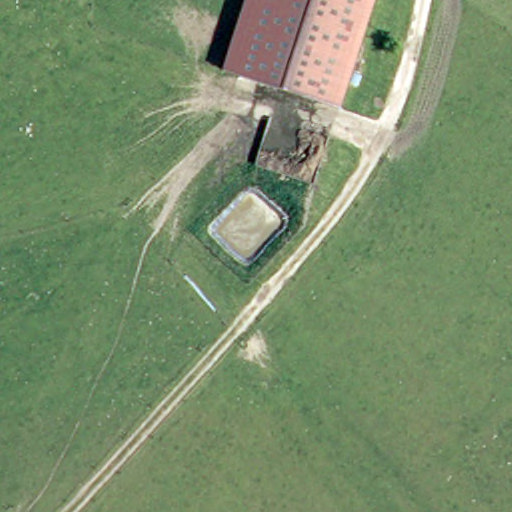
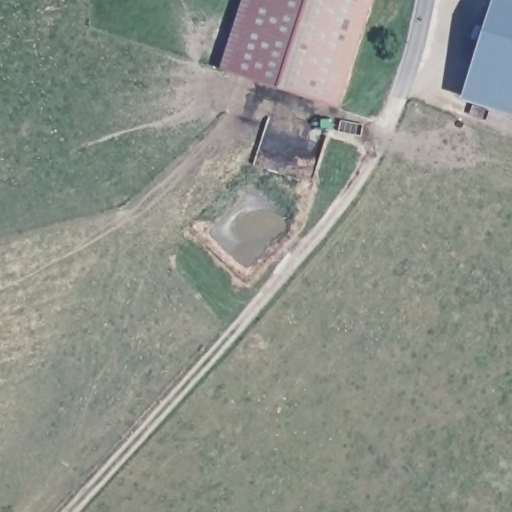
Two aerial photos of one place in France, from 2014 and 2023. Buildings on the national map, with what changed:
unchanged [(246,0),(369,0),(343,103),(227,73),(246,0)]
new [(462,100),(494,0),(503,0),(512,3),(512,115),(462,100)]

